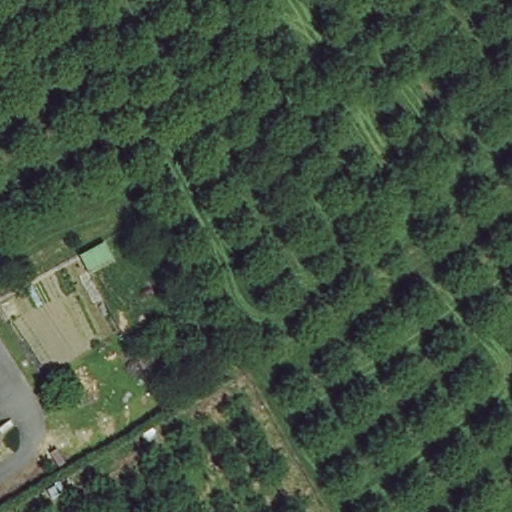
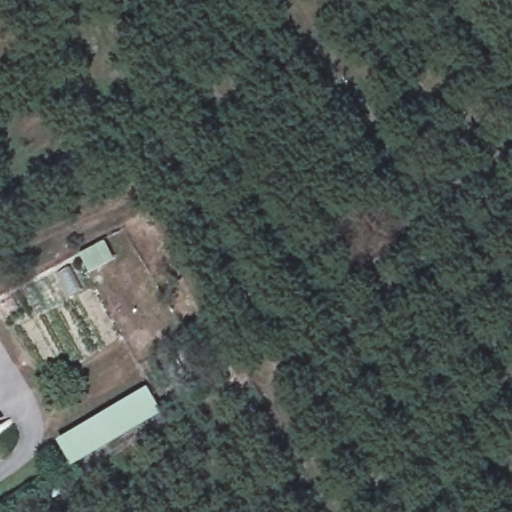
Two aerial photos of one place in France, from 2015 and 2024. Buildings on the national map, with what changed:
new [(146,388),(162,413),(70,466),(54,441),(146,388)]

